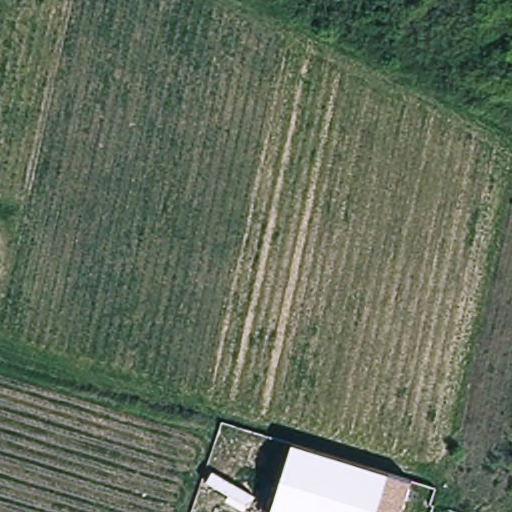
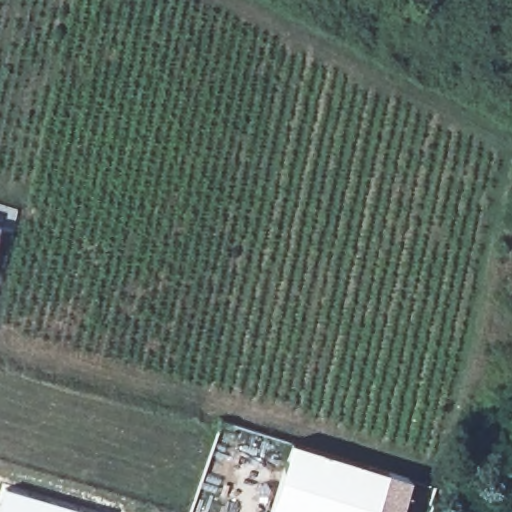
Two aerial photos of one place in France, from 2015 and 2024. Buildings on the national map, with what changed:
new [(4,227),(0,241),(0,226),(4,227)]
unchanged [(279,441),(317,452),(399,477),(388,512),(257,512),(279,441)]
new [(5,487),(92,512),(0,512),(0,502),(5,487)]

